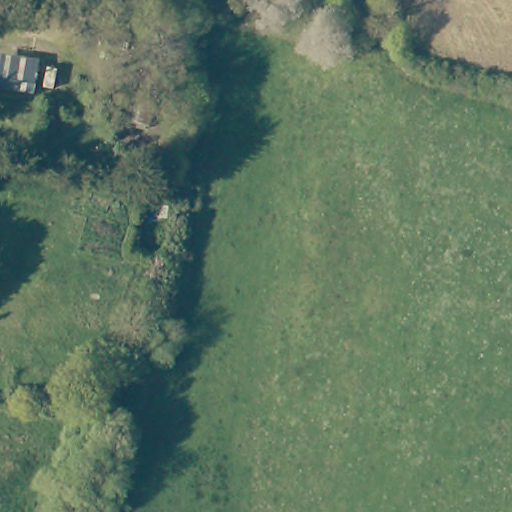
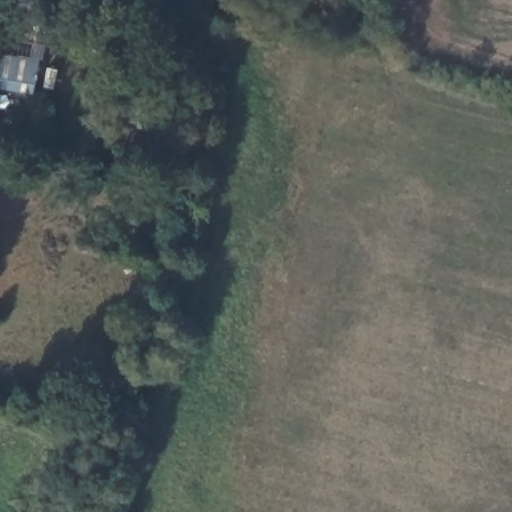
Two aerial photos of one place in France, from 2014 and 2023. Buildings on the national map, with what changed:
unchanged [(40,63),(34,94),(0,88),(0,71),(12,73),(14,58),(40,63)]
unchanged [(156,95),(149,125),(137,123),(137,126),(128,124),(134,91),(156,95)]

